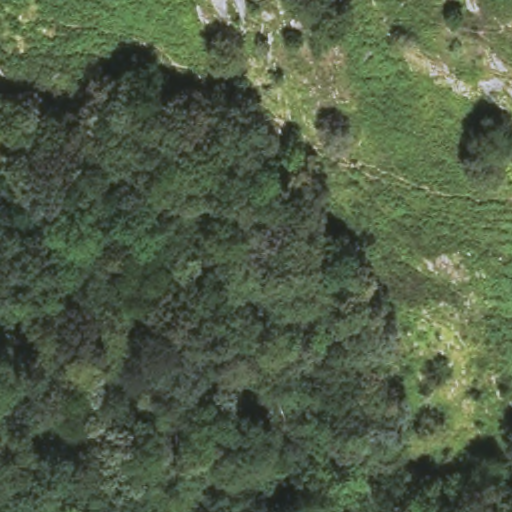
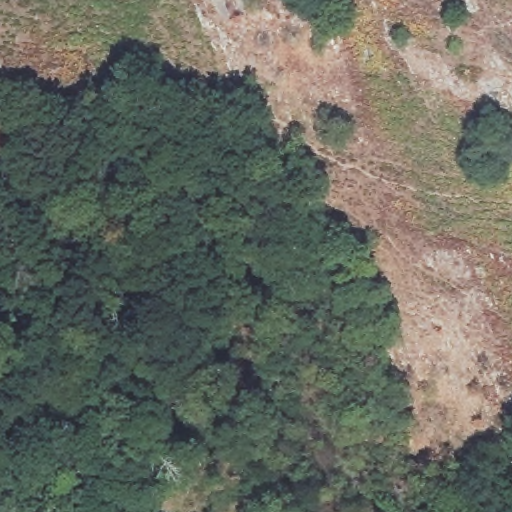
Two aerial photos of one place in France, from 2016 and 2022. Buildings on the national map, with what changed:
[]

